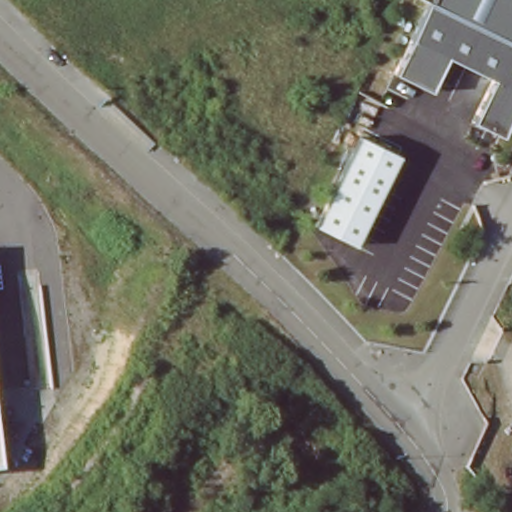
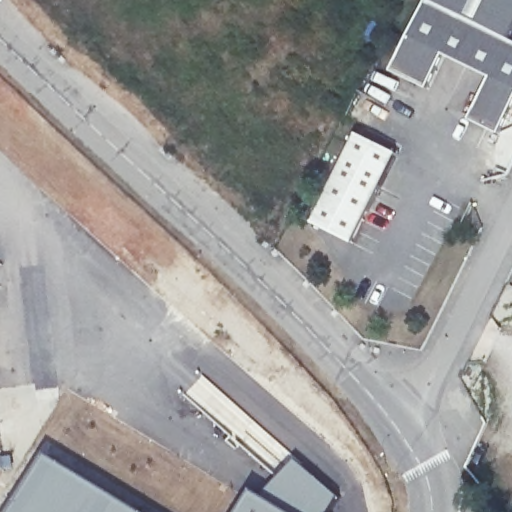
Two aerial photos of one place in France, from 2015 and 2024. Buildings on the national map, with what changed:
unchanged [(512,0),(512,36),(509,44),(431,3),(432,0),(512,0)]
unchanged [(506,136),(474,123),(493,83),(447,61),(431,91),(396,75),(431,3),(512,45),(512,122),(506,136)]
unchanged [(347,235),(316,219),(362,128),(401,150),(371,209),(356,241),(347,235)]
unchanged [(11,290),(0,292),(0,263),(7,262),(11,290)]
unchanged [(0,467),(0,412),(6,467),(0,467)]
new [(142,512),(12,512),(48,455),(142,512)]
new [(291,456),(336,496),(326,512),(289,512),(260,495),(291,456)]
new [(253,490),(260,495),(289,512),(239,512),(253,490)]

